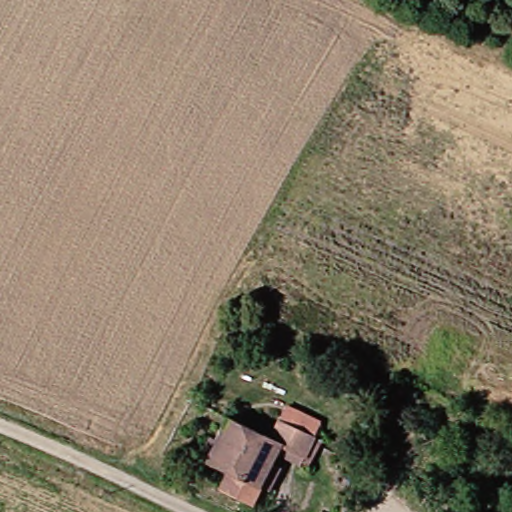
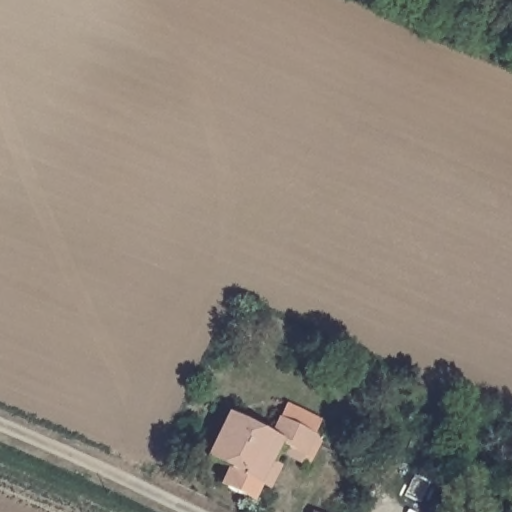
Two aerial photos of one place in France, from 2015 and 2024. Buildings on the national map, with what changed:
unchanged [(224,488),(234,471),(211,458),(234,418),(277,438),(286,421),(320,439),(306,465),(283,452),(264,487),(257,502),(224,488)]

